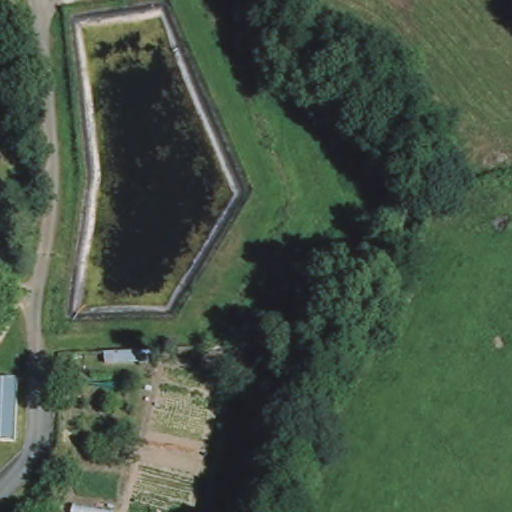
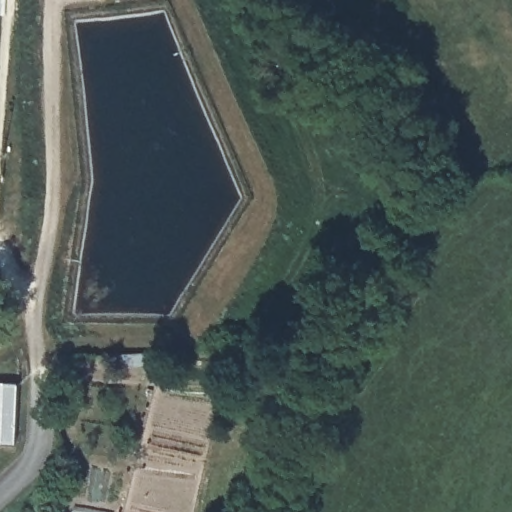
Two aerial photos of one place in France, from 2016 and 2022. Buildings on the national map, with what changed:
unchanged [(17,443),(0,442),(0,382),(19,383),(17,443)]

